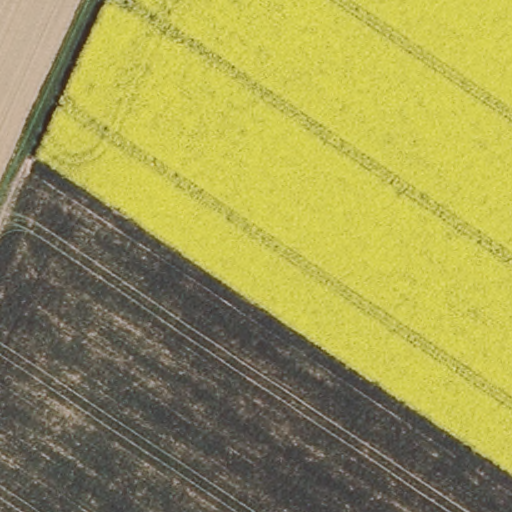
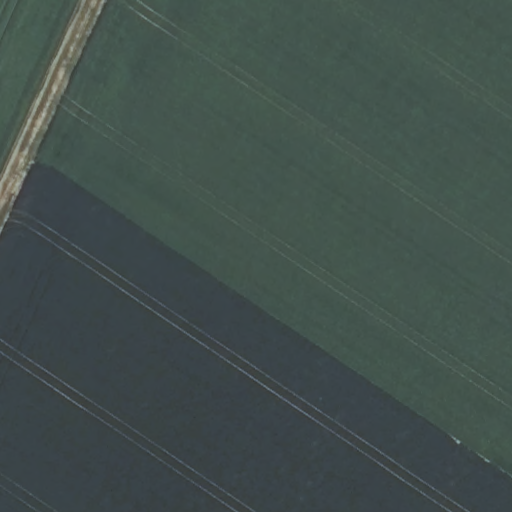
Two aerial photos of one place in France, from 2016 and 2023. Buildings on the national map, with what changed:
[]

